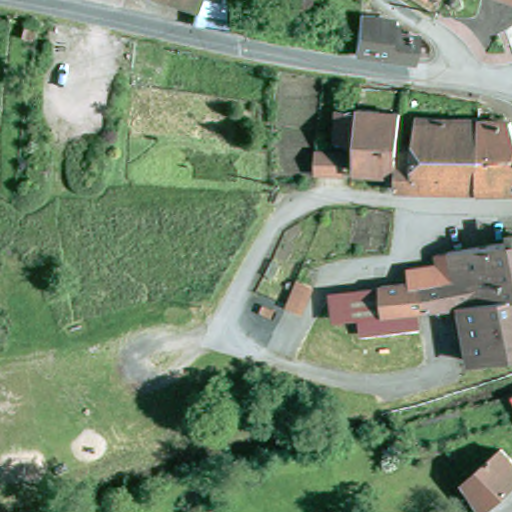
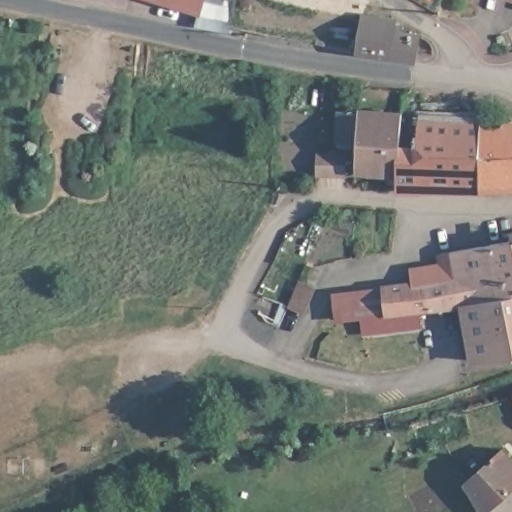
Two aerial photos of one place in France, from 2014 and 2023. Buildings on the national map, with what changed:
unchanged [(64,3),(51,1),(51,0),(64,0),(64,3)]
unchanged [(234,34),(196,27),(200,15),(153,0),(228,0),(234,34)]
unchanged [(358,56),(362,17),(390,19),(393,21),(392,31),(417,35),(413,60),(358,56)]
unchanged [(450,113),(450,104),(478,109),(478,116),(450,113)]
unchanged [(399,111),(396,147),(395,170),(353,168),(356,139),(337,138),(339,111),(359,113),(360,108),(399,111)]
unchanged [(491,122),(491,114),(504,120),(512,129),(512,193),(477,192),(478,121),(491,122)]
unchanged [(477,192),(446,190),(393,186),(395,170),(396,147),(414,148),(417,117),(478,121),(477,192)]
unchanged [(326,148),(351,150),(349,170),(324,168),(325,148),(326,148)]
unchanged [(339,302),(361,300),(386,295),(410,287),(434,280),(457,275),(451,252),(460,251),(475,249),(492,246),(512,243),(512,297),(491,301),(465,307),(448,311),(387,316),(363,319),(356,319),(341,321),(339,302)]
unchanged [(317,296),(309,313),(306,319),(290,311),(293,306),(301,289),(317,296)]
unchanged [(465,307),(491,301),(512,297),(512,356),(473,363),(465,307)]
unchanged [(480,511),(465,492),(459,484),(508,446),(512,452),(512,486),(480,511)]

